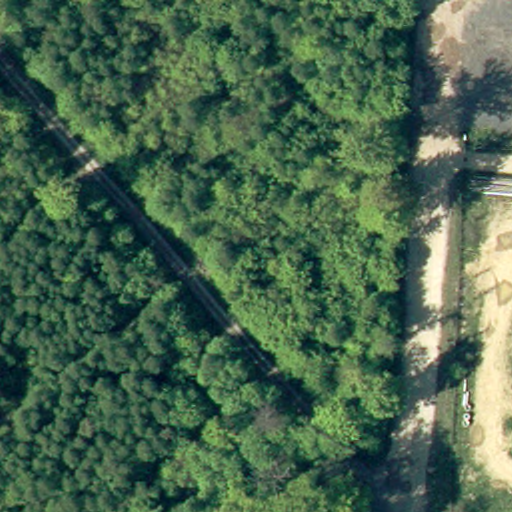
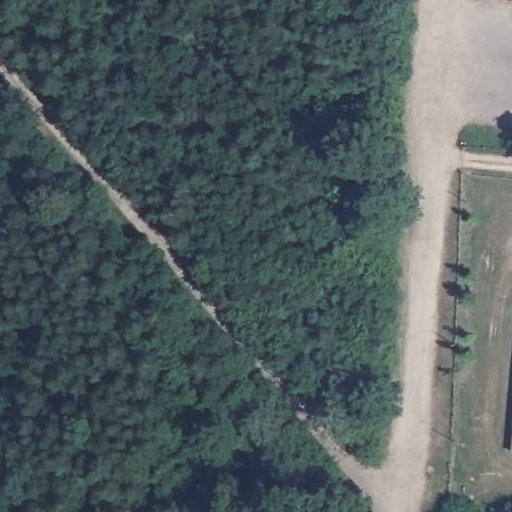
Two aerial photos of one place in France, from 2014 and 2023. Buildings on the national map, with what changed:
unchanged [(510,451),(512,417),(512,451),(510,451)]

